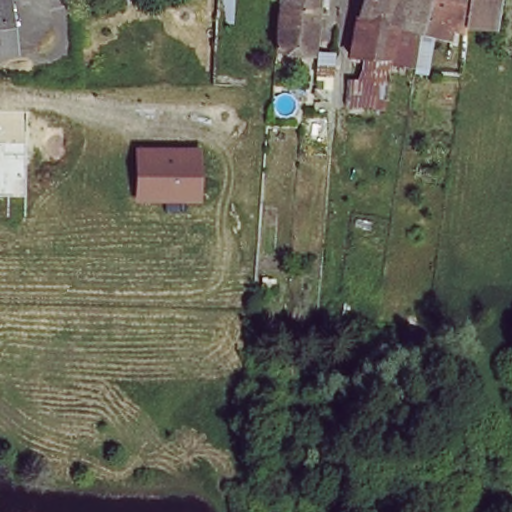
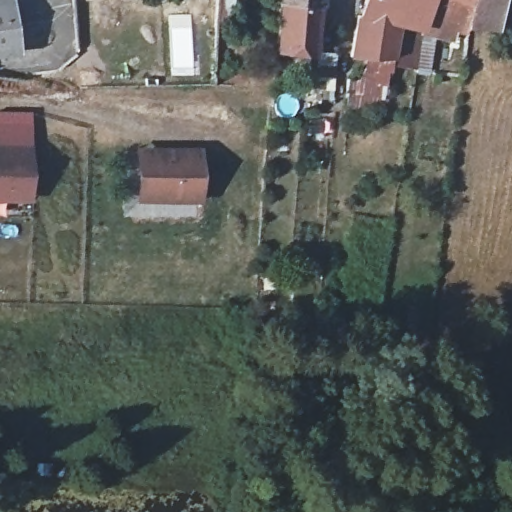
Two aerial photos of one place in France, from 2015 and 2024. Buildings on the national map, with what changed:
unchanged [(8,0),(13,45),(0,47),(0,0),(8,0)]
unchanged [(317,5),(283,1),(283,0),(328,0),(328,7),(317,5)]
unchanged [(354,45),(354,39),(361,5),(363,0),(404,0),(393,45),(354,45)]
unchanged [(422,19),(417,56),(391,52),(393,45),(404,0),(428,0),(423,16),(422,19)]
unchanged [(470,14),(460,12),(452,28),(422,19),(423,16),(428,0),(503,0),(502,19),(470,14)]
unchanged [(310,53),(277,47),(283,1),(317,5),(310,53)]
unchanged [(333,53),(331,77),(315,75),(318,53),(333,53)]
unchanged [(319,95),(334,97),(333,102),(318,101),(319,95)]
new [(32,122),(31,202),(0,201),(0,122),(32,122)]
unchanged [(200,204),(136,206),(137,143),(201,145),(200,204)]

